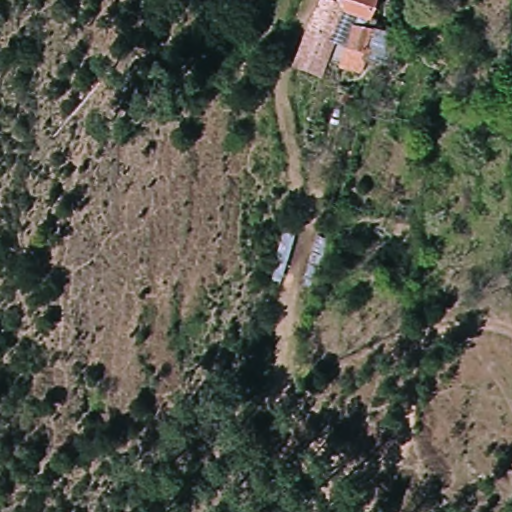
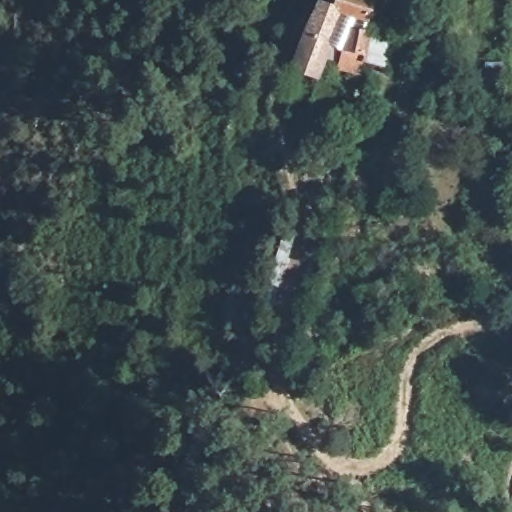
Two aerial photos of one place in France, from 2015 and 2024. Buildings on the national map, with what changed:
unchanged [(331,73),(305,67),(314,36),(320,1),(340,3),(340,0),(378,0),(375,16),(392,18),(390,40),(360,39),(355,57),(336,56),(331,73)]

